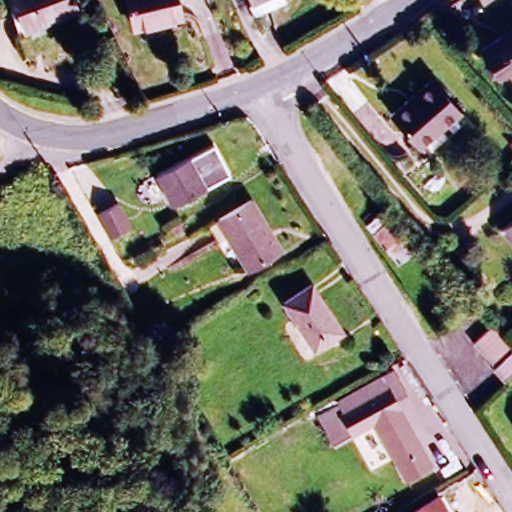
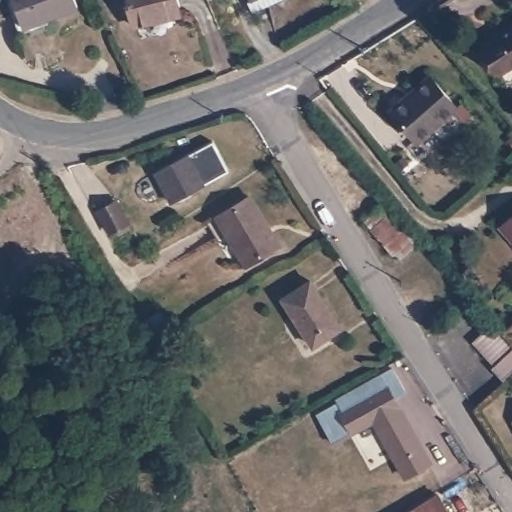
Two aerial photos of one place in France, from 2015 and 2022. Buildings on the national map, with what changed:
unchanged [(21,25),(11,0),(74,0),(76,5),(21,25)]
unchanged [(132,25),(125,0),(175,0),(178,14),(132,25)]
unchanged [(240,1),(244,0),(273,0),(245,12),(240,1)]
unchanged [(512,63),(497,72),(480,45),(512,25),(512,63)]
unchanged [(427,76),(457,109),(417,142),(387,110),(427,76)]
unchanged [(227,171),(170,202),(155,173),(212,142),(227,171)]
unchanged [(250,196),(278,246),(247,265),(217,215),(250,196)]
unchanged [(377,198),(395,220),(392,222),(407,239),(387,255),(360,225),(362,222),(357,215),(377,198)]
unchanged [(127,224),(110,234),(97,211),(115,202),(127,224)]
unchanged [(512,241),(497,225),(512,211),(512,241)]
unchanged [(310,282),(340,329),(312,346),(282,299),(310,282)]
unchanged [(491,367),(492,365),(472,341),(492,323),(512,345),(512,369),(502,378),(491,367)]
unchanged [(320,421),(337,411),(340,410),(335,401),(390,370),(403,392),(392,399),(428,462),(405,476),(372,420),(342,437),(332,443),(320,421)]
unchanged [(431,500),(439,512),(412,512),(431,500)]

